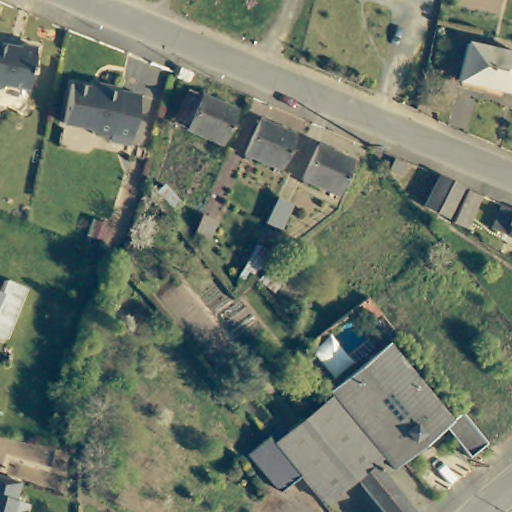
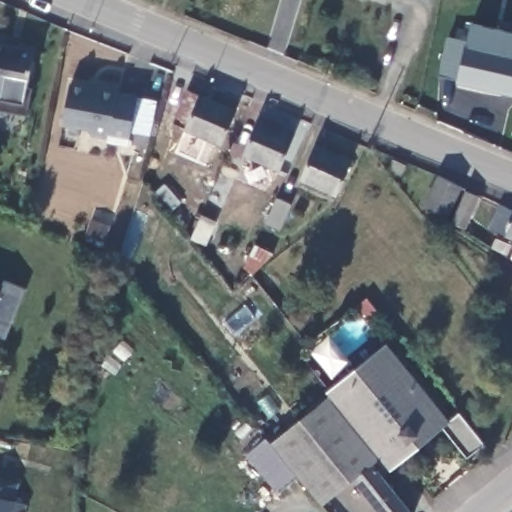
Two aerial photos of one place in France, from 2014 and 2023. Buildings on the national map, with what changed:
unchanged [(455,85),(467,29),(512,43),(512,82),(507,99),(455,85)]
unchanged [(27,49),(20,91),(0,89),(0,48),(11,50),(12,47),(27,49)]
unchanged [(137,102),(127,151),(106,147),(107,143),(90,140),(86,134),(62,130),(68,91),(96,95),(97,92),(117,95),(117,99),(137,102)]
unchanged [(223,150),(175,130),(190,95),(239,115),(223,150)]
unchanged [(276,176),(240,160),(256,124),(291,140),(276,176)]
unchanged [(333,196),(298,180),(313,145),(350,160),(333,196)]
unchanged [(418,213),(432,182),(478,201),(465,234),(418,213)]
unchanged [(493,233),(504,210),(512,214),(512,242),(493,233)]
unchanged [(205,241),(189,235),(199,212),(214,218),(205,241)]
unchanged [(255,268),(241,262),(252,239),(270,247),(262,262),(255,268)]
unchanged [(25,294),(5,345),(0,343),(0,296),(4,286),(25,294)]
unchanged [(482,449),(465,462),(441,432),(400,465),(390,473),(330,400),(325,395),(383,349),(446,425),(457,417),(482,449)]
unchanged [(330,400),(390,473),(378,461),(351,484),(320,511),(319,510),(295,483),(268,452),(330,400)]
unchanged [(268,452),(295,483),(275,499),(243,462),(262,445),(268,452)]
unchanged [(390,473),(380,482),(404,512),(375,512),(351,484),(378,461),(390,473)]
unchanged [(27,512),(0,512),(0,482),(20,488),(15,506),(27,510),(27,512)]

